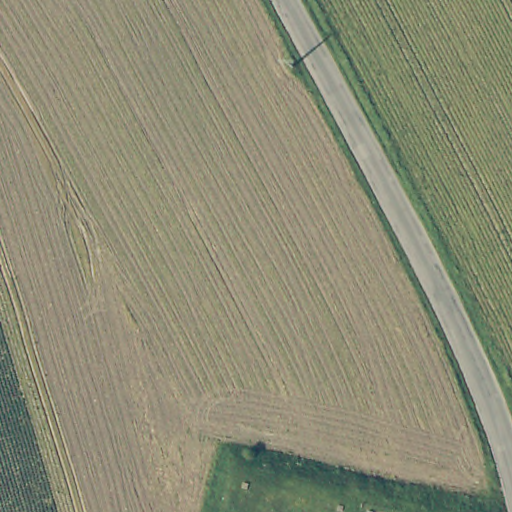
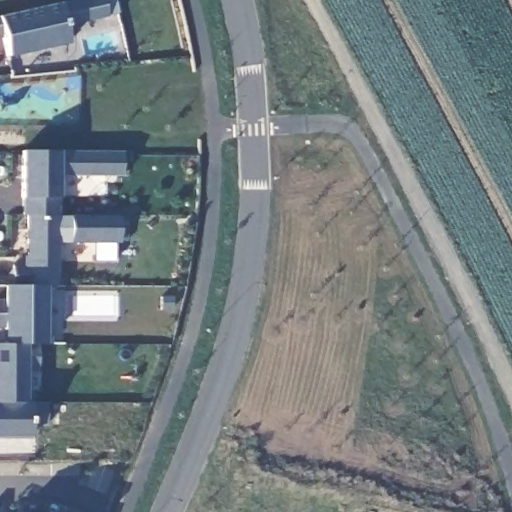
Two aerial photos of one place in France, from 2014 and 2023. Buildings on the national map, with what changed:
new [(65,30),(70,42),(7,57),(4,40),(0,40),(0,15),(57,2),(68,0),(103,0),(107,15),(65,30)]
new [(122,175),(60,175),(59,215),(121,216),(122,244),(59,244),(59,285),(45,285),(42,346),(0,346),(2,327),(0,327),(0,301),(4,301),(4,283),(21,284),(12,263),(23,263),(23,215),(22,197),(22,150),(59,150),(122,150),(122,175)]
new [(0,346),(42,346),(42,371),(29,371),(29,402),(46,402),(46,425),(30,425),(30,437),(0,437),(0,346)]

